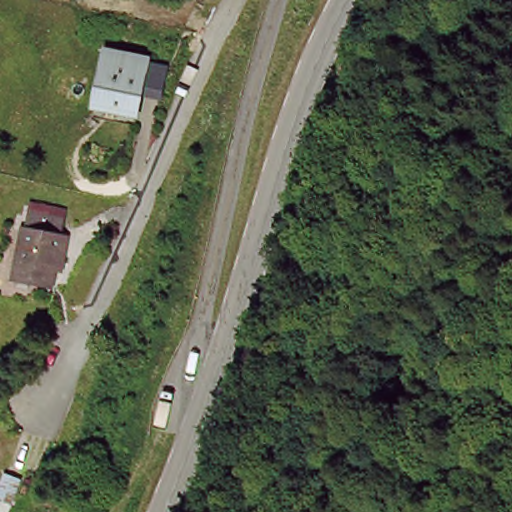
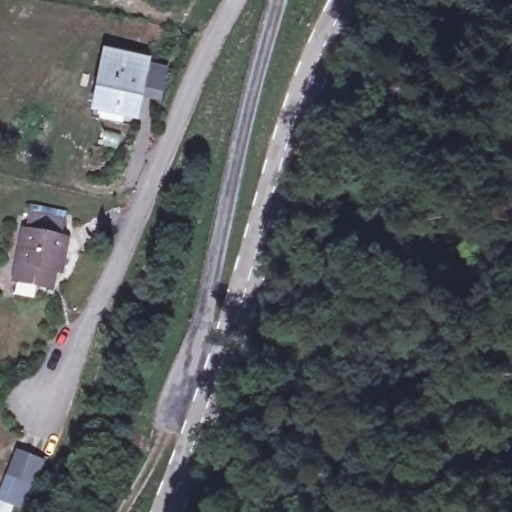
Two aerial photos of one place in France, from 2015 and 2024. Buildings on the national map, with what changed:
unchanged [(143,64),(163,67),(160,90),(139,86),(135,112),(97,106),(107,54),(143,60),(143,64)]
unchanged [(27,238),(28,238),(32,222),(66,230),(62,246),(67,248),(60,277),(54,276),(50,293),(15,284),(27,238)]
new [(13,506),(11,512),(0,512),(0,490),(17,449),(45,460),(27,511),(13,506)]

